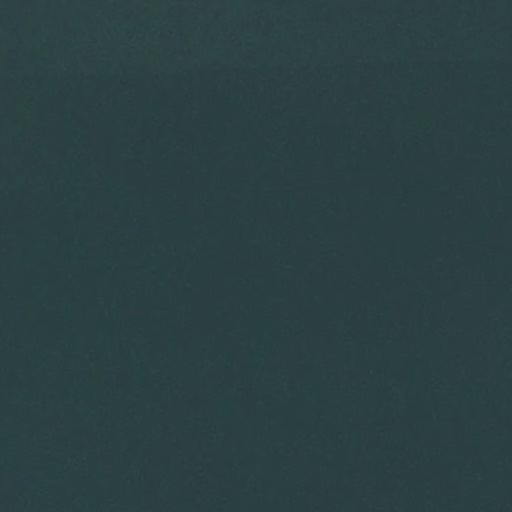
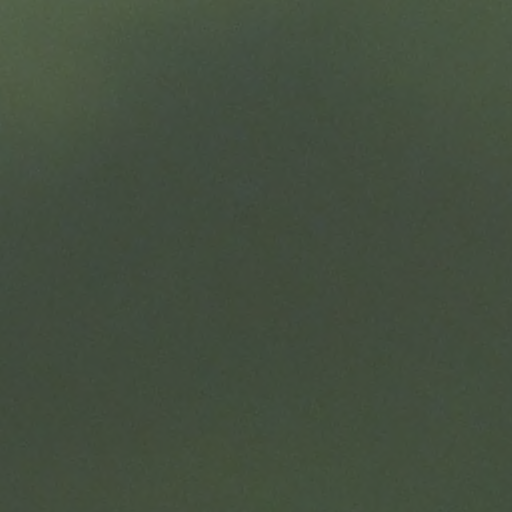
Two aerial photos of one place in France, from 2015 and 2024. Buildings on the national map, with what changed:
[]

